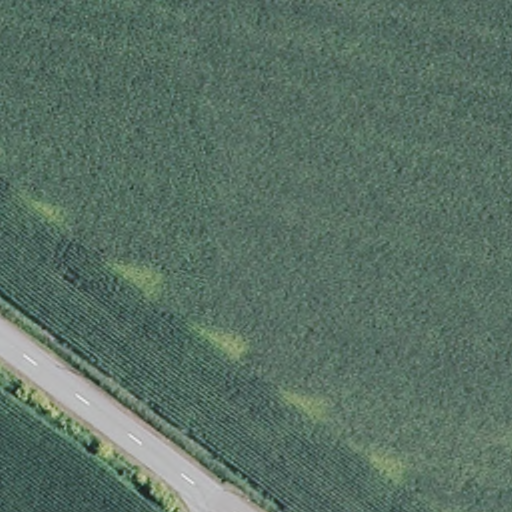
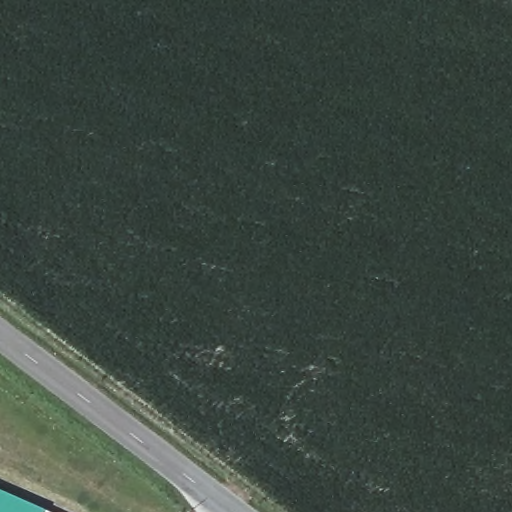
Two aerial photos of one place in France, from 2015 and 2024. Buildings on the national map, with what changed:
new [(44,511),(46,512),(0,512),(0,491),(44,511)]

